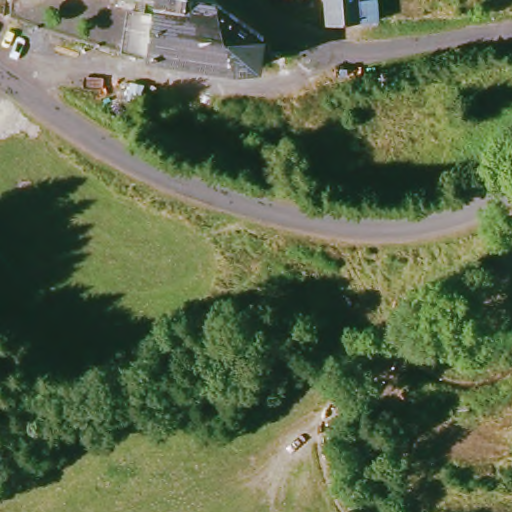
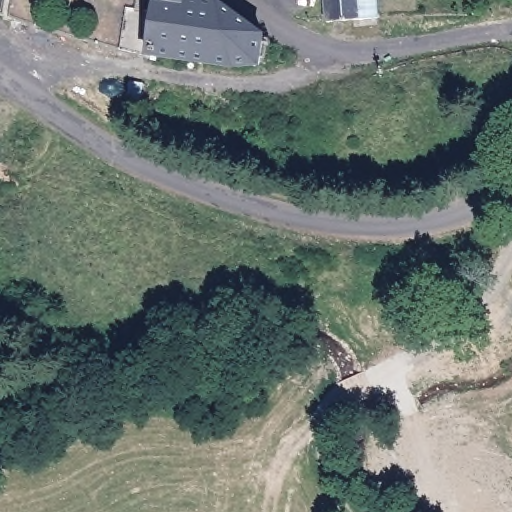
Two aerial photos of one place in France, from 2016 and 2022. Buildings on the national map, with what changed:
unchanged [(163,59),(163,63),(136,58),(142,0),(169,0),(171,0),(163,59)]
unchanged [(253,71),(172,60),(163,59),(171,0),(169,0),(224,0),(229,4),(279,41),(274,69),(253,71)]
unchanged [(321,6),(325,4),(324,0),(356,0),(356,3),(373,3),(374,25),(323,28),(321,6)]

